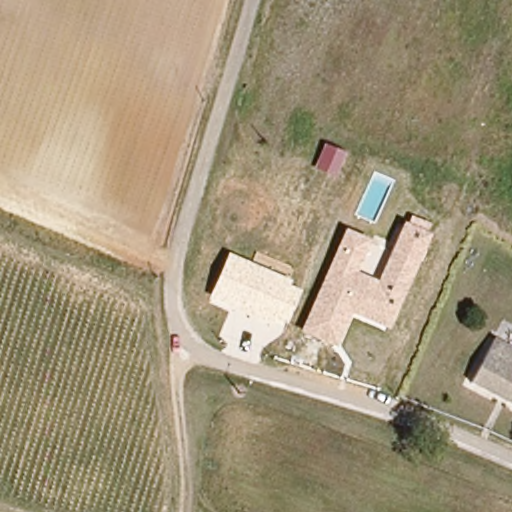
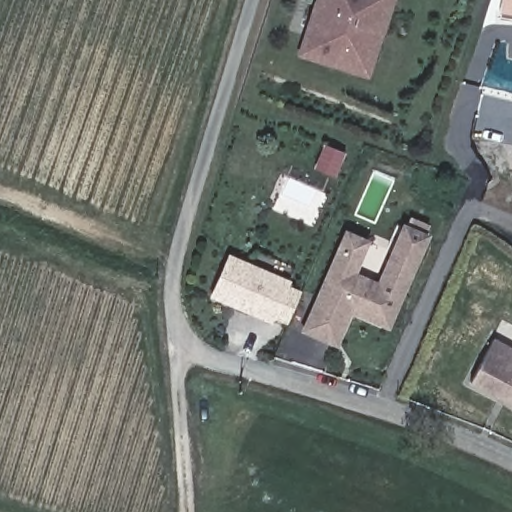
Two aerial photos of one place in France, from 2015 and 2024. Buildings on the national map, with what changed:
new [(297,55),(314,0),(395,0),(369,78),(297,55)]
new [(502,14),(504,0),(512,0),(512,16),(502,14)]
unchanged [(423,230),(428,232),(389,327),(350,311),(337,346),(300,330),(344,230),(369,240),(357,272),(376,279),(402,221),(406,222),(410,214),(427,222),(423,230)]
unchanged [(288,286),(300,291),(287,323),(279,320),(277,325),(208,297),(228,253),(291,279),(288,286)]
unchanged [(466,384),(494,337),(512,346),(512,408),(466,384)]

